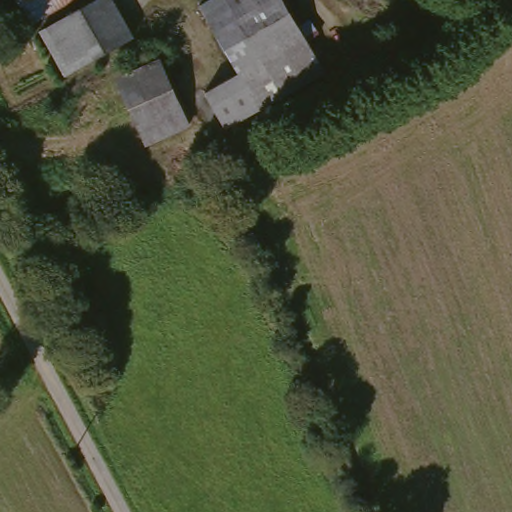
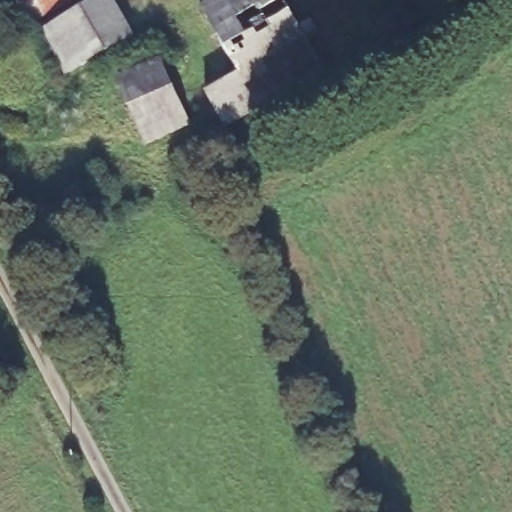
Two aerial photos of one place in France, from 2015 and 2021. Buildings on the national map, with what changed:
unchanged [(71,4),(51,16),(40,13),(36,11),(28,0),(77,0),(71,4)]
unchanged [(84,0),(118,0),(134,31),(66,68),(41,23),(84,0)]
unchanged [(194,4),(201,0),(280,0),(299,34),(232,71),(194,4)]
unchanged [(232,71),(299,34),(321,75),(223,128),(201,88),(232,71)]
unchanged [(160,56),(193,122),(150,144),(115,80),(160,56)]

